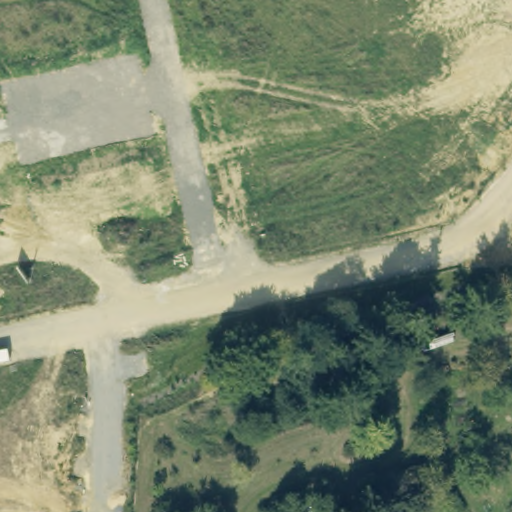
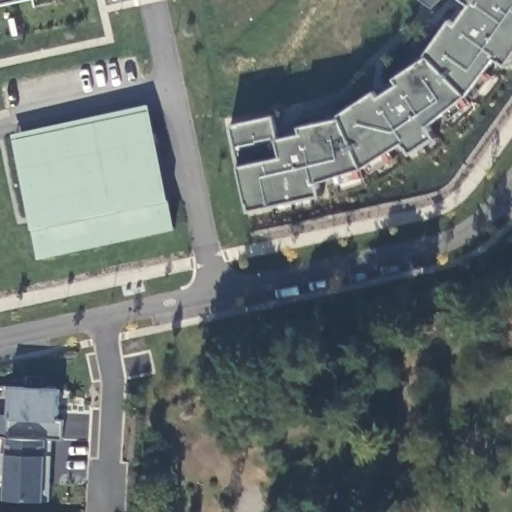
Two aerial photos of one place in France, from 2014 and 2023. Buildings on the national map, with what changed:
new [(0,4),(0,0),(19,0),(0,4)]
new [(281,137),(302,132),(301,126),(342,116),(341,114),(377,90),(381,96),(401,84),(397,77),(430,56),(427,54),(452,19),(457,24),(472,3),(468,0),(512,0),(512,59),(508,65),(497,56),(468,94),(430,125),(437,137),(412,153),(405,141),(365,167),(318,181),(322,194),(252,209),(242,165),(232,124),(275,114),(281,137)]
new [(433,7),(422,0),(442,0),(433,7)]
new [(149,104),(176,229),(39,258),(12,134),(149,104)]
unchanged [(6,475),(0,474),(0,453),(7,453),(8,437),(9,418),(11,386),(60,388),(59,420),(64,420),(62,440),(53,439),(50,500),(4,499),(6,475)]

